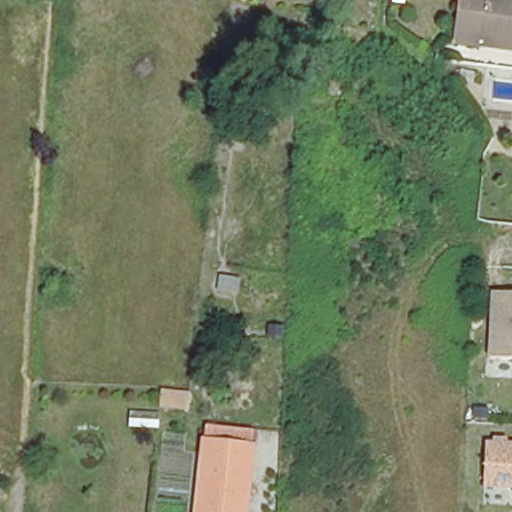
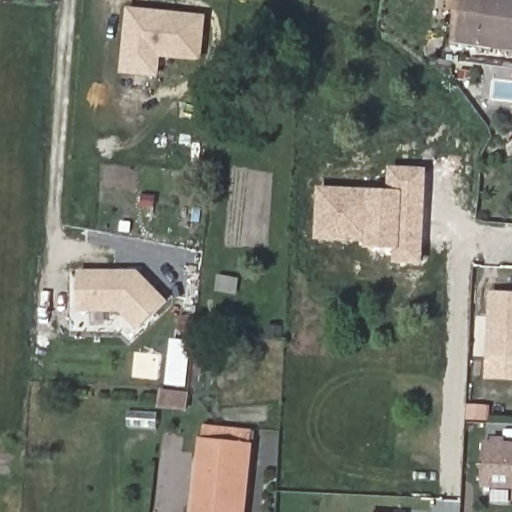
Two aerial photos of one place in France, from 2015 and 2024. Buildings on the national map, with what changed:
unchanged [(458,0),(512,0),(512,44),(452,36),(455,23),(458,0)]
new [(129,9),(207,16),(203,61),(161,58),(160,76),(122,73),(129,9)]
new [(427,169),(423,265),(390,263),(390,249),(366,248),(366,240),(317,239),(318,187),(390,190),(390,168),(427,169)]
new [(141,271),(171,301),(141,332),(121,313),(79,313),(81,271),(141,271)]
unchanged [(490,294),(512,294),(512,359),(487,359),(490,294)]
unchanged [(258,435),(243,512),(192,512),(207,427),(258,435)]
unchanged [(484,440),(512,441),(512,490),(481,488),(484,440)]

